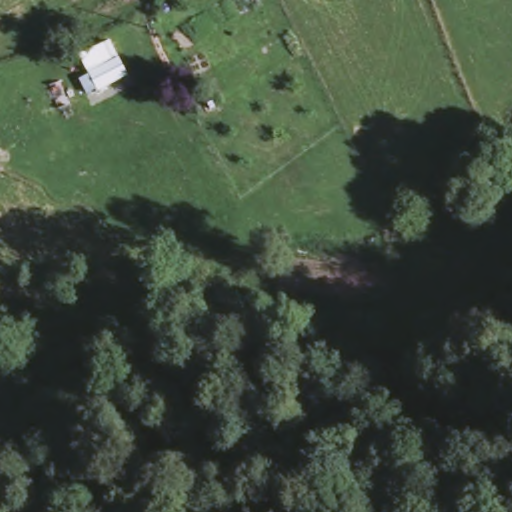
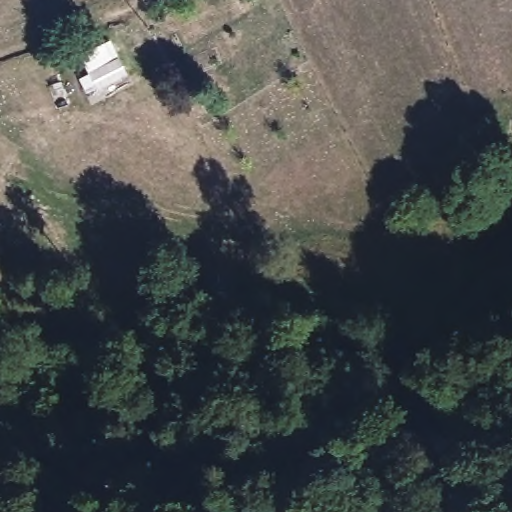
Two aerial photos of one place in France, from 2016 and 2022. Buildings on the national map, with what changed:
unchanged [(127,77),(84,101),(74,80),(84,75),(76,56),(110,40),(127,77)]

